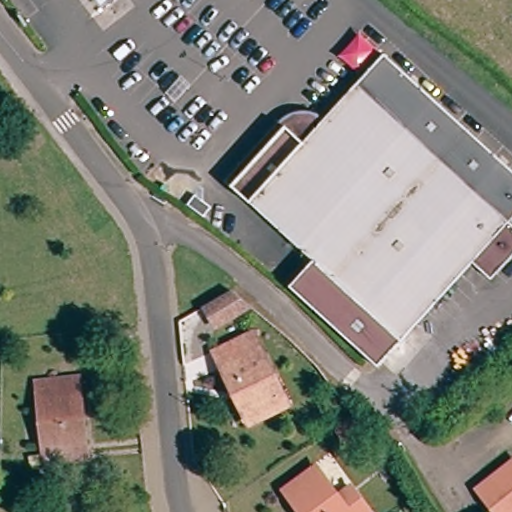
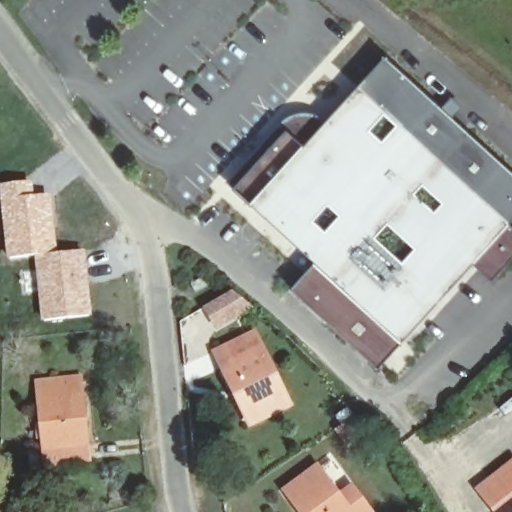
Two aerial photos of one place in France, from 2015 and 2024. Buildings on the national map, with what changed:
unchanged [(385,366),(294,285),(319,261),(235,187),(290,126),(306,143),(385,55),(512,165),(512,221),(483,254),(385,366)]
new [(32,180),(34,195),(52,193),(58,252),(33,257),(6,261),(0,202),(0,184),(32,180)]
unchanged [(483,254),(512,221),(512,260),(502,271),(483,254)]
new [(58,252),(84,249),(92,317),(41,323),(33,257),(58,252)]
unchanged [(254,306),(221,329),(209,310),(235,292),(254,306)]
unchanged [(248,423),(230,380),(223,363),(217,349),(255,332),(262,346),(288,406),(248,423)]
unchanged [(58,464),(43,464),(35,381),(80,379),(87,446),(88,461),(58,464)]
unchanged [(292,485),(326,463),(346,493),(357,486),(372,510),(370,512),(310,512),(292,485)]
unchanged [(512,465),(512,512),(505,512),(485,489),(512,465)]

